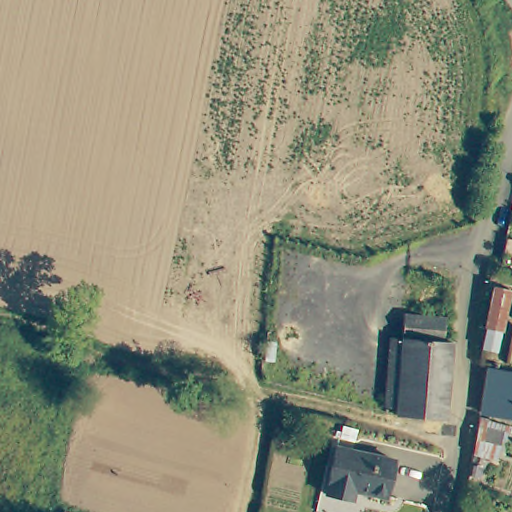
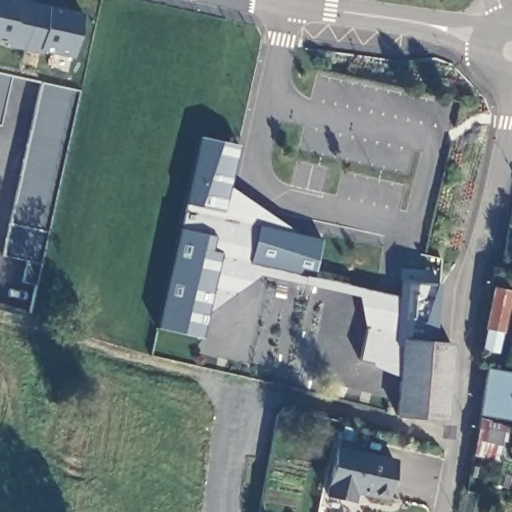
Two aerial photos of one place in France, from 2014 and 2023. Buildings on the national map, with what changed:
new [(41,49),(40,52),(7,44),(8,39),(0,37),(0,0),(32,0),(84,11),(75,57),(41,49)]
new [(370,367),(369,363),(358,359),(364,328),(356,295),(303,284),(260,274),(207,313),(202,337),(156,327),(179,227),(184,202),(199,138),(237,145),(229,186),(295,233),(320,238),(312,277),(396,295),(398,278),(437,280),(433,338),(400,335),(397,376),(370,367)]
unchanged [(512,240),(512,270),(502,268),(508,239),(512,240)]
unchanged [(488,348),(492,329),(490,328),(498,287),(512,290),(512,307),(507,332),(505,331),(501,351),(488,348)]
unchanged [(395,410),(395,403),(400,335),(441,338),(450,339),(444,414),(395,410)]
demolished [(273,343),(271,361),(263,359),(265,342),(273,343)]
unchanged [(504,417),(486,413),(493,368),(512,371),(512,418),(504,417)]
unchanged [(485,418),(511,425),(500,460),(478,453),(485,418)]
unchanged [(384,497),(353,490),(351,499),(323,494),(334,447),(393,460),(384,497)]

